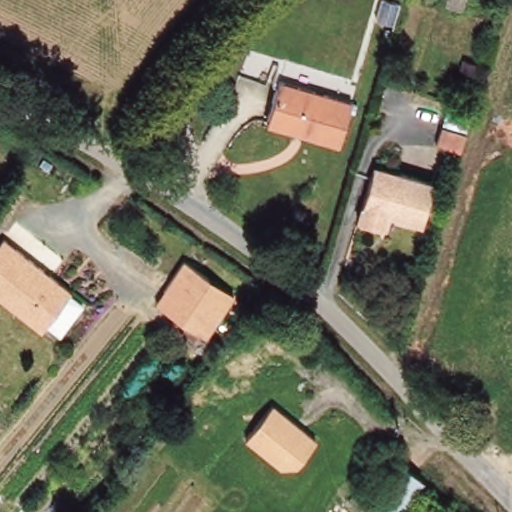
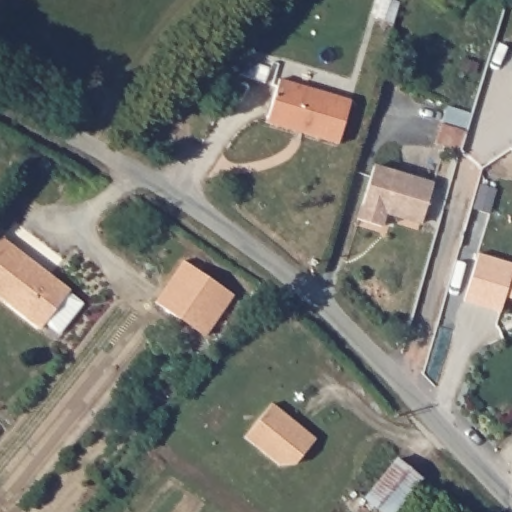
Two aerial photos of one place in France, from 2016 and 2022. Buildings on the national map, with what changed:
unchanged [(346,106),(335,143),(301,133),(303,129),(268,118),(278,86),(346,106)]
unchanged [(468,126),(462,146),(440,139),(446,119),(468,126)]
unchanged [(435,187),(422,227),(387,215),(382,228),(360,221),(376,168),(435,187)]
unchanged [(75,287),(46,327),(0,294),(0,246),(5,238),(75,287)]
new [(501,309),(465,298),(480,251),(512,261),(512,296),(506,294),(501,309)]
unchanged [(160,302),(188,261),(212,278),(184,319),(160,302)]
unchanged [(212,278),(237,296),(209,337),(184,319),(212,278)]
unchanged [(279,401),(321,438),(301,462),(285,463),(251,434),(279,401)]
unchanged [(417,480),(392,512),(375,512),(361,500),(392,462),(417,480)]

